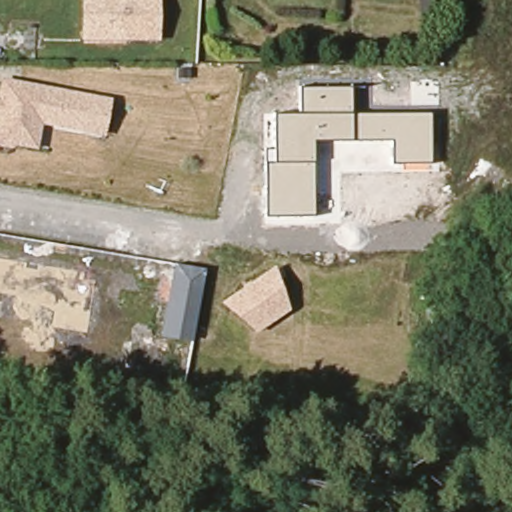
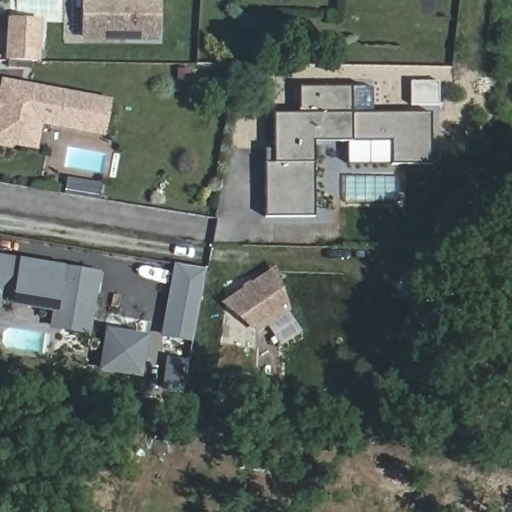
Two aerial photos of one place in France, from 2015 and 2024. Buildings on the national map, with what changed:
unchanged [(160,42),(79,41),(79,0),(162,0),(160,42)]
new [(15,21),(42,23),(40,60),(12,58),(15,21)]
unchanged [(107,136),(41,125),(38,150),(15,146),(14,151),(0,149),(0,81),(0,77),(113,97),(107,136)]
unchanged [(430,164),(391,164),(390,141),(313,143),(313,216),(267,216),(266,150),(271,150),(271,114),(298,114),(298,87),(350,87),(350,113),(430,114),(430,164)]
new [(425,247),(451,247),(438,301),(413,294),(425,247)]
new [(0,317),(0,255),(101,272),(90,333),(51,326),(53,313),(12,307),(13,299),(5,297),(1,317),(0,317)]
unchanged [(258,334),(220,302),(276,265),(291,312),(258,334)]
unchanged [(192,342),(162,337),(175,267),(205,272),(192,342)]
new [(111,330),(138,334),(149,335),(143,373),(106,367),(108,354),(111,330)]

